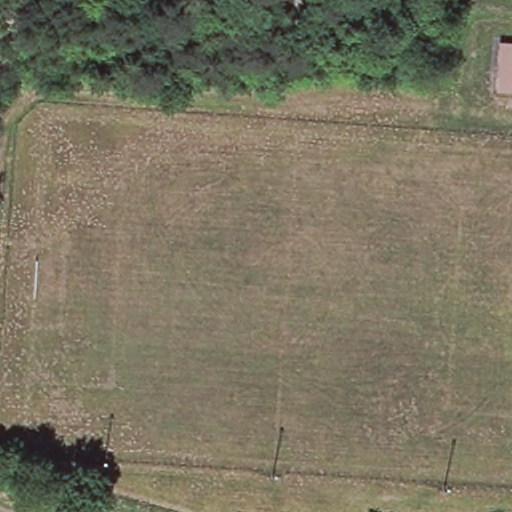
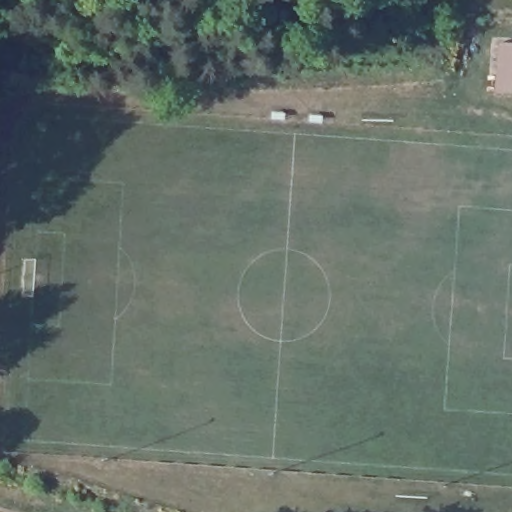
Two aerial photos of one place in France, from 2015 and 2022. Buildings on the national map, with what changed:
unchanged [(497,96),(500,50),(512,51),(512,97),(497,96)]

